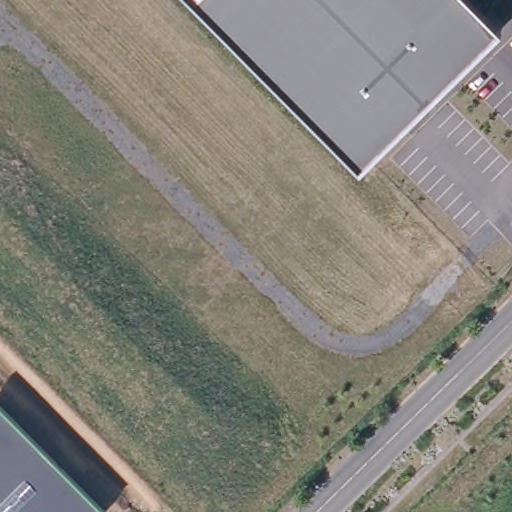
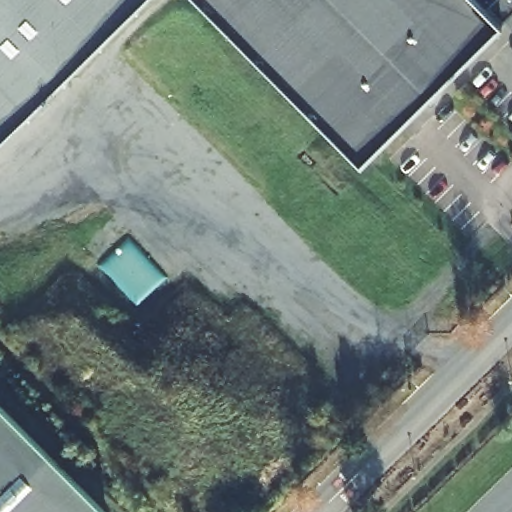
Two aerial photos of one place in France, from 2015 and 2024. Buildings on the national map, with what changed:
new [(143,0),(0,140),(0,0),(143,0)]
unchanged [(360,159),(202,0),(480,0),(500,20),(360,159)]
unchanged [(104,512),(0,512),(0,408),(104,512)]

